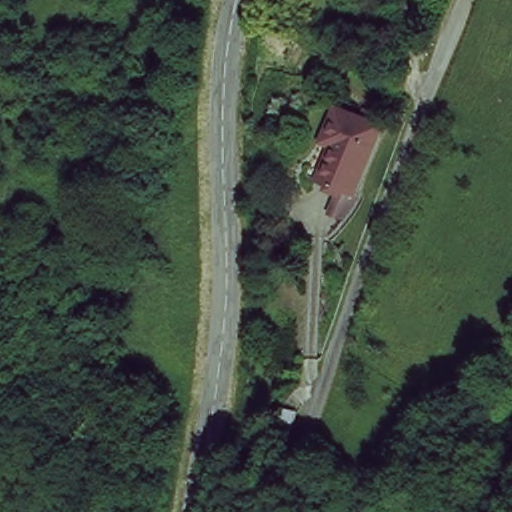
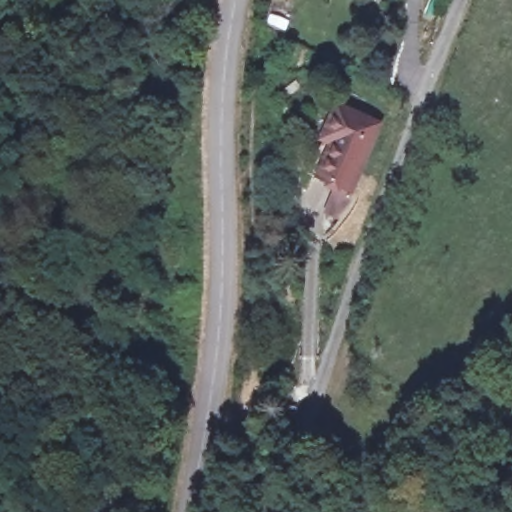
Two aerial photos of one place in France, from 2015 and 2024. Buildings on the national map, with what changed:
unchanged [(377,118),(355,190),(312,176),(323,140),(315,137),(319,123),(326,101),(377,118)]

